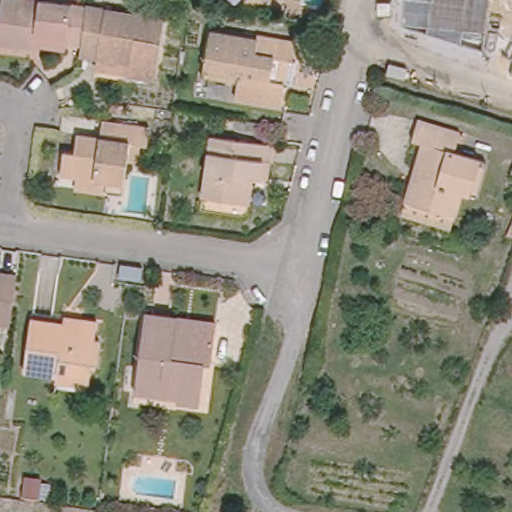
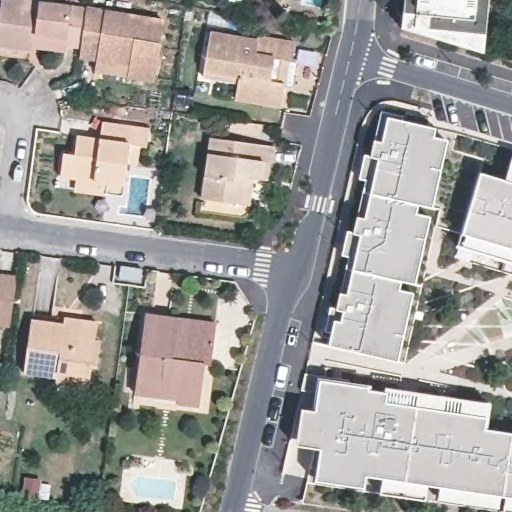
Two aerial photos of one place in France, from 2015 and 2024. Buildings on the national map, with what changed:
unchanged [(33,44),(0,40),(0,0),(71,0),(70,12),(83,13),(80,40),(63,38),(62,43),(33,39),(33,44)]
unchanged [(94,67),(95,54),(78,50),(80,40),(83,13),(85,1),(85,0),(115,5),(163,13),(153,75),(126,70),(126,72),(94,67)]
unchanged [(485,49),(399,25),(402,0),(489,0),(485,49)]
unchanged [(274,106),(229,99),(232,81),(212,77),(198,75),(205,31),(247,38),(247,33),(290,41),(287,59),(285,59),(280,82),(277,81),(274,106)]
unchanged [(510,60),(512,55),(512,61),(510,60)]
demolished [(412,135),(418,114),(460,126),(454,146),(485,156),(475,189),(462,186),(455,210),(405,195),(422,137),(412,135)]
new [(437,128),(435,137),(450,140),(395,363),(327,345),(334,320),(340,321),(344,314),(337,310),(340,292),(347,294),(361,236),(353,233),(359,215),(365,217),(380,159),(370,157),(373,139),(383,141),(388,117),(437,128)]
unchanged [(65,176),(68,153),(78,153),(82,135),(103,138),(107,120),(153,127),(150,145),(145,145),(142,162),(132,161),(128,183),(127,196),(79,190),(80,177),(65,176)]
unchanged [(246,203),(207,197),(216,136),(277,145),(275,161),(273,178),(264,177),(257,177),(253,204),(246,203)]
new [(505,180),(512,157),(512,260),(460,245),(481,174),(505,180)]
unchanged [(140,278),(119,275),(120,264),(142,267),(140,278)]
unchanged [(10,325),(0,324),(0,273),(16,275),(10,325)]
unchanged [(100,333),(104,334),(100,362),(95,362),(93,380),(60,375),(60,369),(29,365),(35,314),(68,318),(68,311),(85,314),(102,315),(100,333)]
unchanged [(203,362),(198,404),(177,401),(177,397),(135,391),(145,312),(177,317),(215,320),(213,331),(210,362),(203,362)]
new [(368,386),(368,391),(388,393),(387,402),(488,416),(485,429),(512,434),(512,496),(365,474),(364,487),(317,480),(322,450),(297,447),(302,411),(316,413),(321,381),(368,386)]

